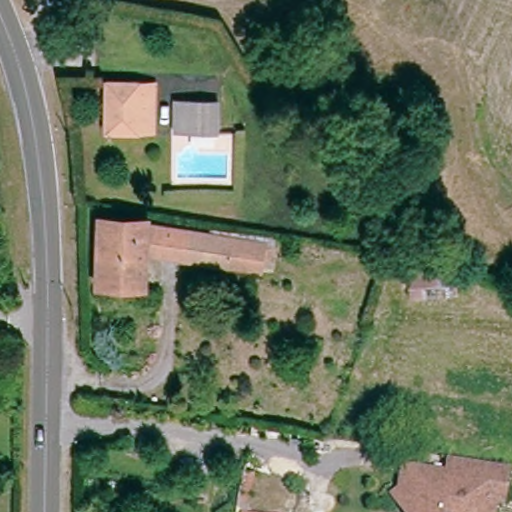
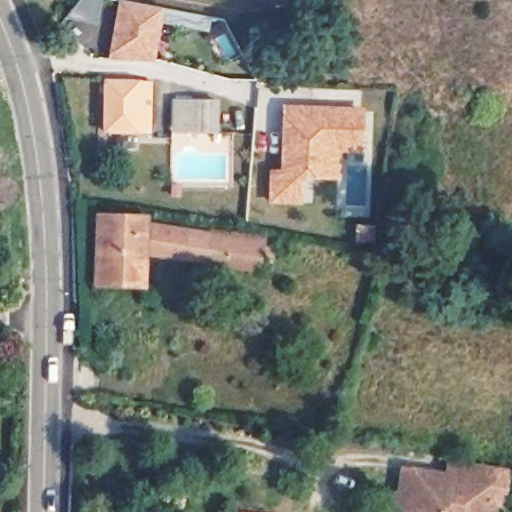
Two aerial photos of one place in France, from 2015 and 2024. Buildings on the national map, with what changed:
new [(165,8),(156,58),(110,57),(119,0),(124,0),(165,8)]
unchanged [(155,133),(108,131),(110,81),(158,85),(155,133)]
unchanged [(211,145),(171,140),(174,105),(215,111),(211,145)]
new [(315,150),(314,178),(300,177),(298,204),(271,202),(272,173),(283,174),(286,110),(363,112),(361,151),(315,150)]
unchanged [(149,223),(278,249),(271,278),(145,258),(144,294),(92,292),(96,220),(149,223)]
unchanged [(493,512),(396,512),(397,493),(405,493),(406,486),(431,490),(432,464),(486,475),(494,501),(493,512)]

